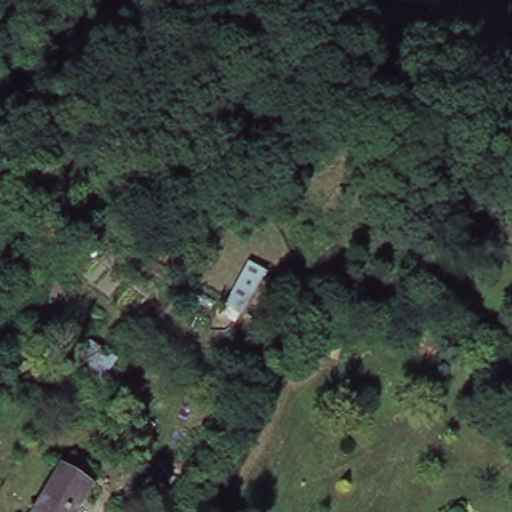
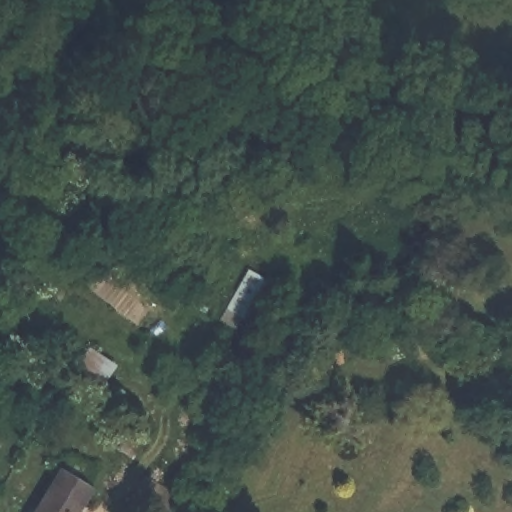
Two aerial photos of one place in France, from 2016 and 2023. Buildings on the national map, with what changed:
unchanged [(239,327),(218,316),(241,264),(263,275),(239,327)]
unchanged [(116,361),(102,386),(70,368),(84,343),(116,361)]
unchanged [(96,490),(80,512),(23,512),(58,463),(96,490)]

